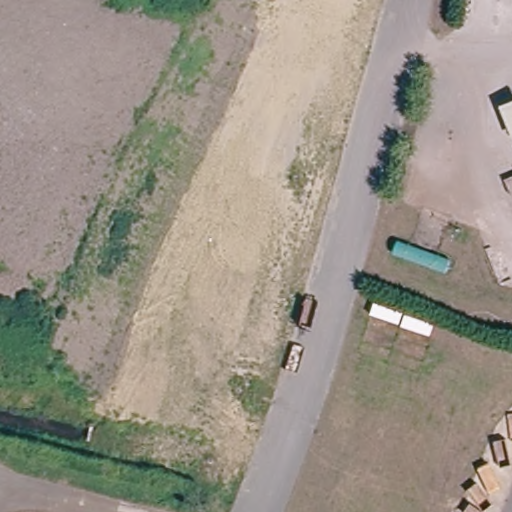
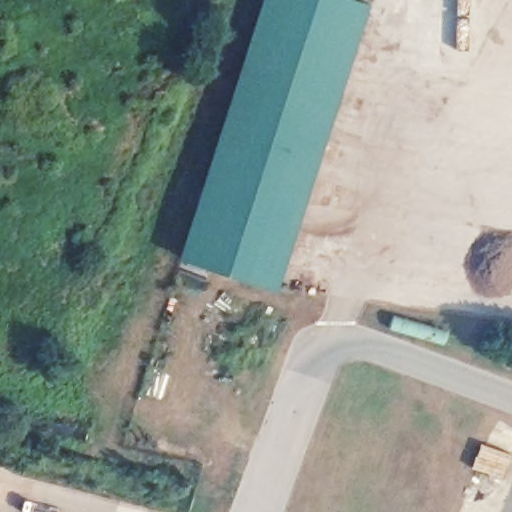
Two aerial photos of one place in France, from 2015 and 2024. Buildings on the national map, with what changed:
new [(282,291),(183,261),(266,0),(362,0),(373,4),(282,291)]

